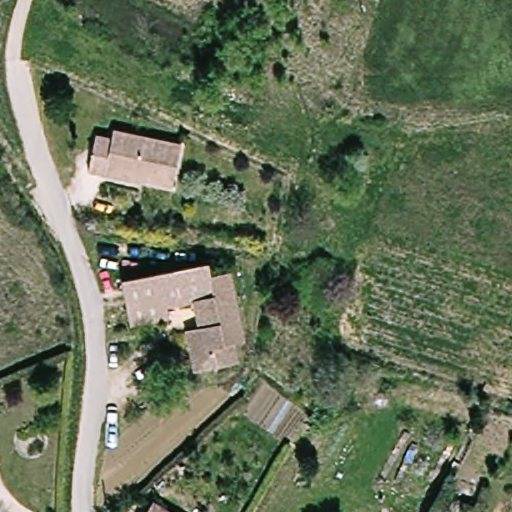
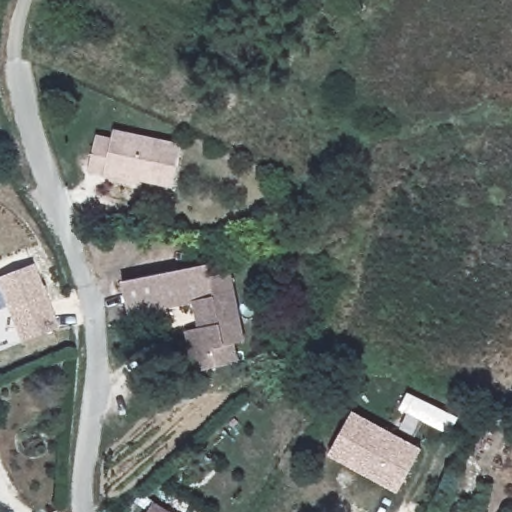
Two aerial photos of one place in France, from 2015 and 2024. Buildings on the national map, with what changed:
unchanged [(103,178),(87,174),(93,139),(112,142),(114,131),(178,146),(170,186),(142,181),(140,186),(103,178)]
new [(19,343),(0,292),(0,277),(32,265),(57,328),(19,343)]
unchanged [(205,266),(209,279),(230,274),(245,341),(237,343),(240,360),(195,371),(190,333),(198,330),(193,303),(167,308),(170,318),(130,325),(120,283),(205,266)]
new [(408,392),(458,417),(450,434),(400,409),(408,392)]
new [(422,448),(397,492),(328,455),(352,409),(422,448)]
unchanged [(166,512),(151,512),(155,505),(166,512)]

